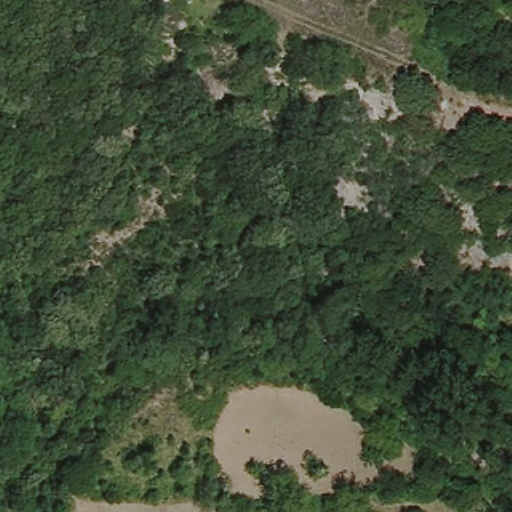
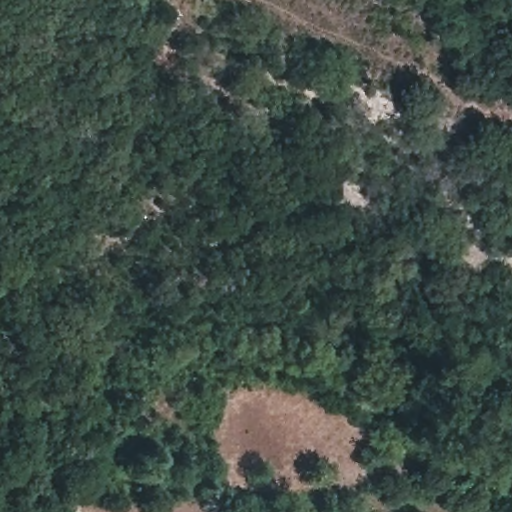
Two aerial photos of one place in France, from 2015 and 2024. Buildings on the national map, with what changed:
[]

